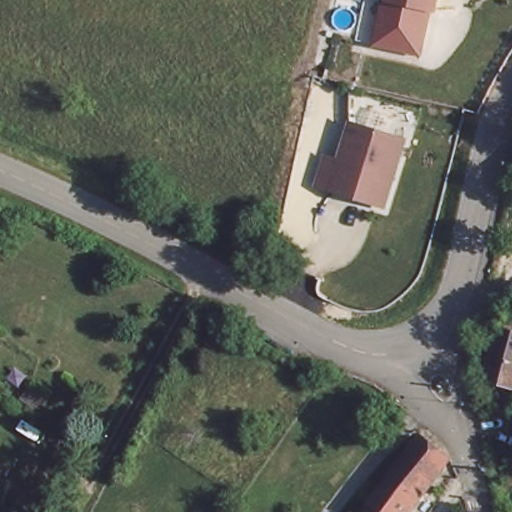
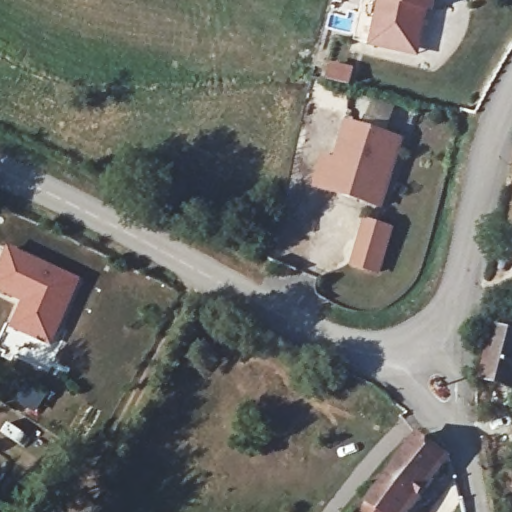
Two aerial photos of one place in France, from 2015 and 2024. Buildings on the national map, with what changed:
unchanged [(373,50),(386,0),(439,0),(425,60),(373,50)]
unchanged [(405,135),(383,204),(331,191),(351,119),(405,135)]
new [(82,278),(51,347),(10,329),(21,303),(0,293),(0,269),(9,247),(82,278)]
unchanged [(477,373),(492,320),(512,328),(512,369),(508,383),(477,373)]
new [(19,371),(51,389),(33,414),(5,395),(19,371)]
unchanged [(357,511),(367,498),(417,433),(442,452),(397,512),(389,512),(385,509),(383,512),(359,512),(357,511)]

